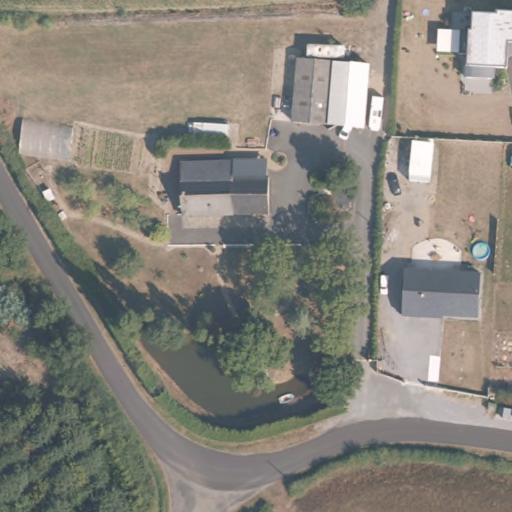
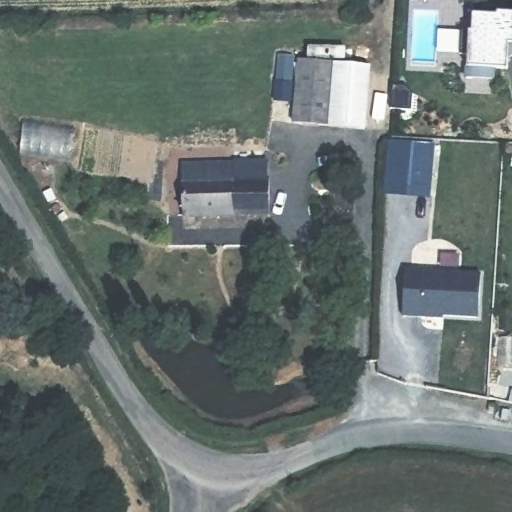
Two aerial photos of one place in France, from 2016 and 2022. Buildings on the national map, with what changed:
unchanged [(512,16),(512,45),(508,45),(506,70),(495,69),(494,81),(465,79),(469,14),(512,16)]
unchanged [(292,116),(294,68),(295,55),(327,56),(326,68),(324,117),(292,116)]
unchanged [(369,65),(365,129),(329,127),(333,62),(369,65)]
new [(388,139),(435,143),(428,198),(383,194),(388,139)]
unchanged [(231,160),(230,185),(265,186),(265,221),(229,221),(229,226),(179,226),(177,161),(231,160)]
unchanged [(405,270),(480,273),(477,318),(440,316),(440,320),(401,316),(405,270)]

